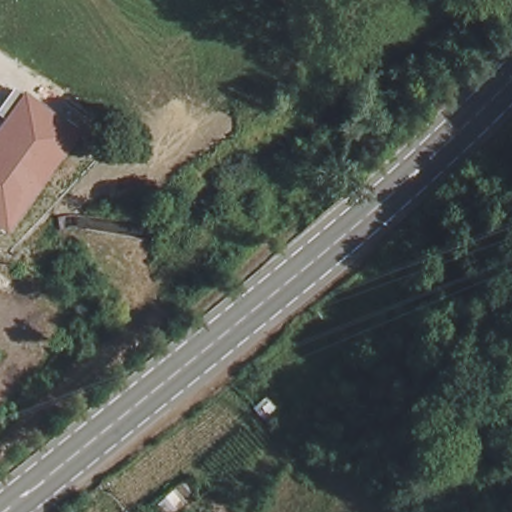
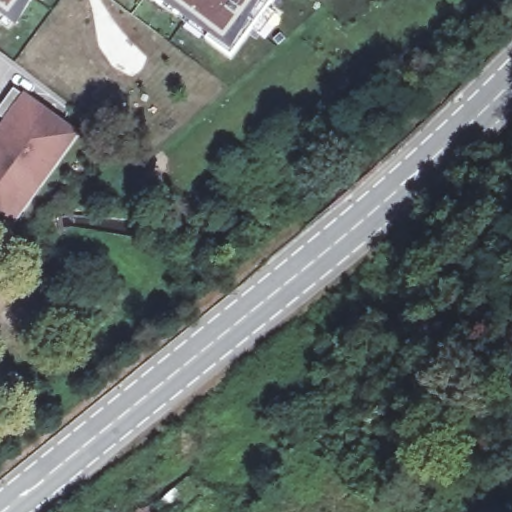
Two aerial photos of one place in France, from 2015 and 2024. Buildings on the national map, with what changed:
new [(0,23),(0,0),(30,0),(16,27),(12,24),(7,30),(2,25),(0,23)]
new [(275,13),(260,34),(252,26),(230,54),(154,0),(271,0),(267,7),(275,13)]
unchanged [(10,232),(0,226),(0,126),(23,94),(77,133),(10,232)]

